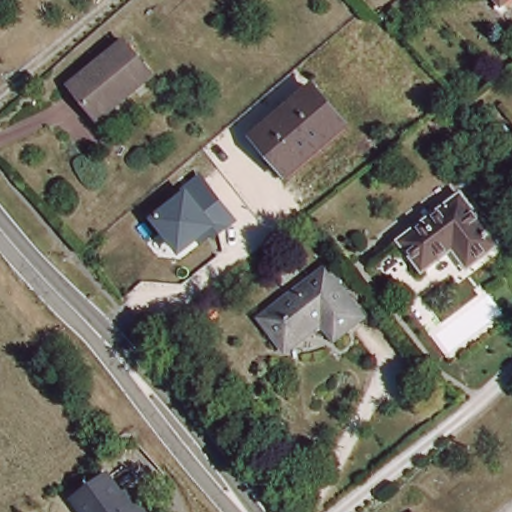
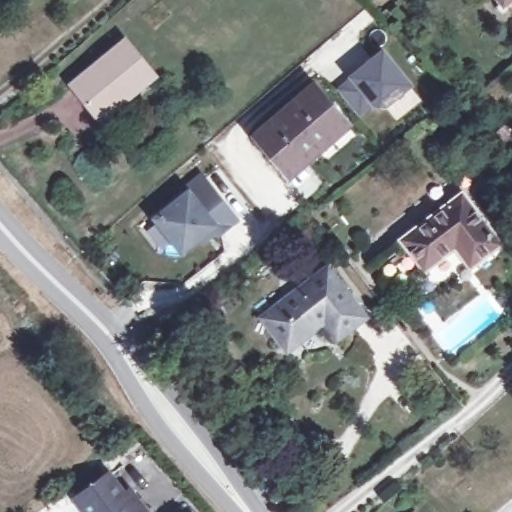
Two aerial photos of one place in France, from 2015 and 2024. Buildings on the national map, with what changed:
unchanged [(95,110),(71,79),(125,35),(153,70),(127,92),(99,115),(95,110)]
new [(352,77),(350,75),(380,51),(407,84),(382,104),(372,102),(370,100),(360,110),(357,105),(355,107),(338,88),(352,77)]
unchanged [(345,124),(287,174),(255,137),(313,87),(345,124)]
unchanged [(203,246),(198,240),(180,256),(148,219),(201,174),(237,221),(203,246)]
unchanged [(490,238),(459,262),(444,242),(414,265),(390,235),(452,187),(490,238)]
unchanged [(363,305),(335,327),(322,311),(287,338),(262,307),(327,258),(363,305)]
unchanged [(265,273),(256,270),(260,260),(268,263),(265,273)]
unchanged [(428,370),(423,375),(417,369),(422,364),(428,370)]
unchanged [(110,472),(124,491),(129,487),(148,512),(81,512),(72,499),(110,472)]
unchanged [(418,512),(409,512),(414,508),(418,512)]

